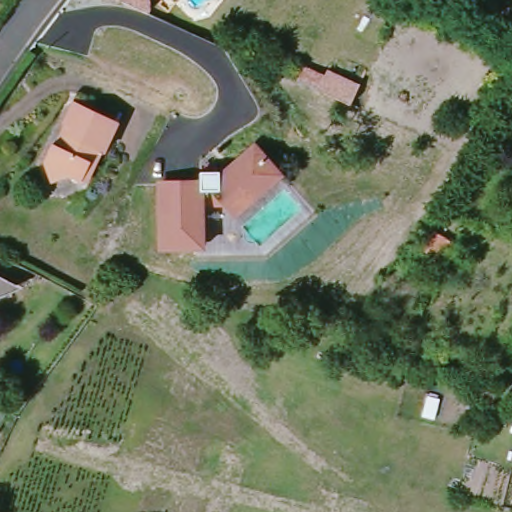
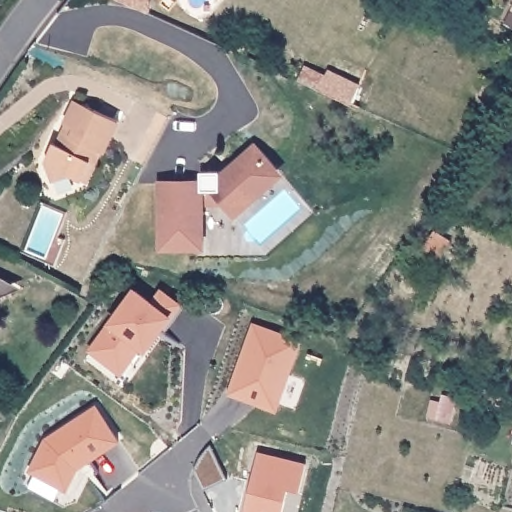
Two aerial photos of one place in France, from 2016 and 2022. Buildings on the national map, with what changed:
unchanged [(154,10),(130,0),(154,0),(155,7),(154,10)]
unchanged [(183,0),(179,5),(173,0),(183,0)]
unchanged [(512,0),(512,7),(507,5),(510,0),(512,0)]
unchanged [(334,65),(366,79),(358,99),(325,85),(334,65)]
unchanged [(81,175),(68,169),(57,172),(52,174),(50,169),(45,156),(52,140),(56,141),(65,122),(63,120),(74,99),(116,117),(102,147),(100,146),(93,159),(85,177),(81,175)]
unchanged [(205,185),(205,174),(223,174),(225,177),(248,156),(250,158),(262,147),(282,170),(247,200),(252,206),(237,219),(226,206),(206,206),(206,250),(163,250),(163,185),(205,185)]
unchanged [(428,225),(451,237),(441,260),(420,245),(428,225)]
unchanged [(0,289),(0,276),(13,283),(0,289)]
new [(171,319),(147,353),(140,348),(122,373),(90,351),(109,322),(135,286),(152,299),(161,287),(183,303),(171,319)]
new [(277,411),(227,393),(252,321),(302,340),(277,411)]
new [(80,468),(67,492),(27,471),(43,440),(97,405),(119,442),(80,468)]
new [(298,492),(288,490),(283,512),(244,512),(258,451),(307,462),(298,492)]

